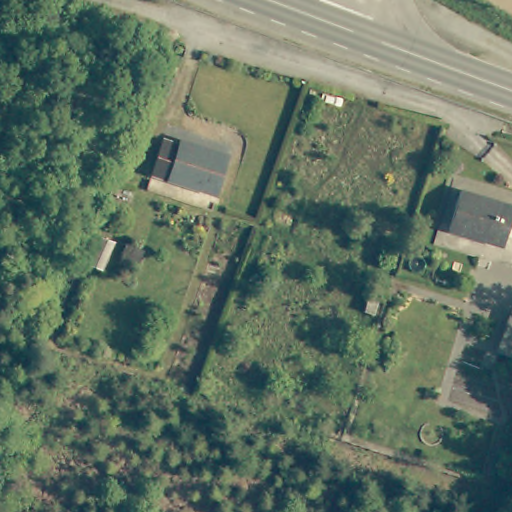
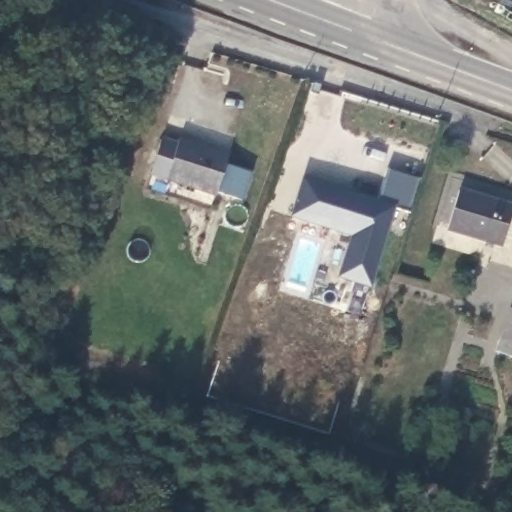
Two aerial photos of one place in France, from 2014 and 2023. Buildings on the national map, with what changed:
unchanged [(230,155),(217,195),(150,175),(160,140),(177,144),(178,139),(230,155)]
new [(379,199),(388,169),(421,179),(411,213),(396,209),(371,288),(337,277),(351,236),(290,217),(305,175),(379,199)]
unchanged [(502,239),(501,244),(446,229),(458,189),(512,204),(508,216),(512,217),(512,242),(502,239)]
unchanged [(512,316),(512,351),(501,348),(511,316),(512,316)]

